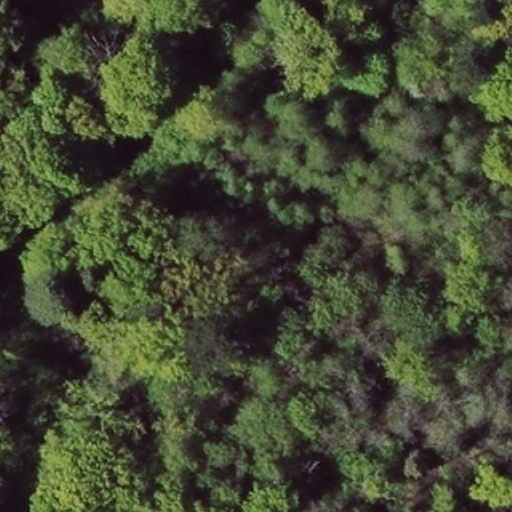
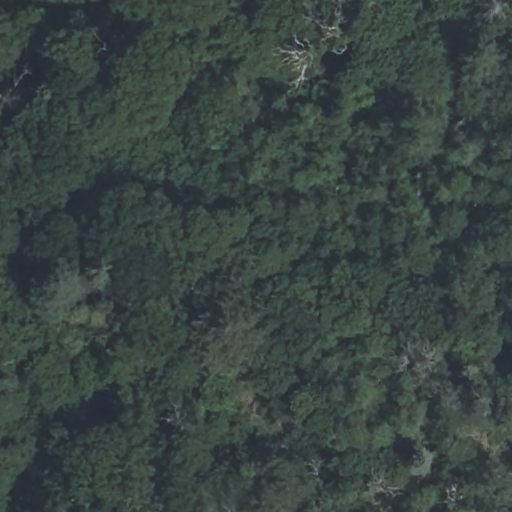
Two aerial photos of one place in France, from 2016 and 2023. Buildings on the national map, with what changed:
unchanged [(421,4),(392,5),(392,0),(421,0),(421,4)]

